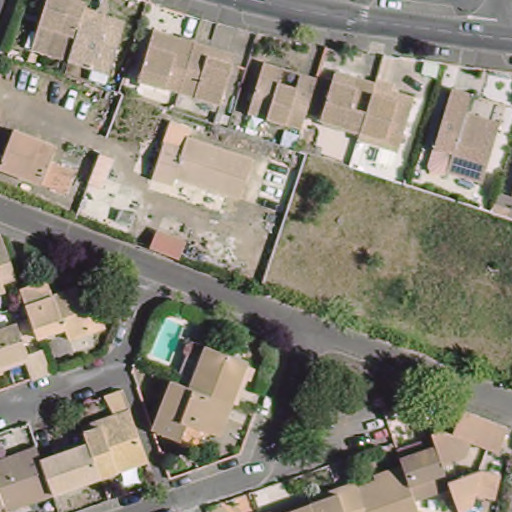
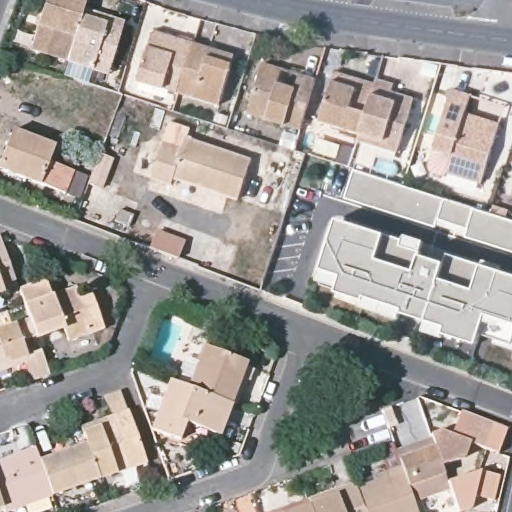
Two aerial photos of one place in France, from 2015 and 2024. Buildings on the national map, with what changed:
unchanged [(37,30),(40,17),(42,12),(46,0),(86,0),(83,9),(69,54),(45,47),(32,42),(37,30)]
unchanged [(92,71),(66,62),(69,54),(83,9),(99,13),(107,16),(123,19),(108,70),(107,75),(92,71)]
unchanged [(187,89),(147,76),(162,26),(203,39),(195,66),(187,89)]
unchanged [(186,91),(187,89),(195,66),(203,39),(221,45),(243,52),(241,61),(228,104),(186,91)]
unchanged [(296,76),(298,67),(315,72),(299,123),(246,107),(262,56),(281,62),(278,71),(296,76)]
unchanged [(318,112),(331,74),(334,64),(355,71),(373,76),(358,126),(318,112)]
unchanged [(396,146),(356,134),(358,126),(373,76),(375,72),(392,77),(390,85),(396,87),(412,92),(396,146)]
unchanged [(451,168),(456,152),(454,149),(438,144),(455,86),(474,92),(469,109),(480,113),(501,120),(484,178),(451,168)]
unchanged [(37,183),(0,169),(0,161),(11,131),(50,146),(45,161),(70,171),(62,192),(37,183)]
unchanged [(240,197),(176,177),(173,185),(153,179),(165,142),(184,149),(188,137),(253,160),(240,197)]
new [(115,160),(104,191),(90,185),(102,155),(115,160)]
new [(512,253),(464,237),(466,233),(438,222),(436,228),(346,199),(354,170),(512,220),(512,253)]
new [(402,240),(405,234),(426,241),(422,254),(444,261),(447,254),(481,265),(512,274),(512,343),(482,335),(479,346),(444,334),(447,326),(403,312),(404,308),(365,295),(363,301),(338,292),(343,276),(323,270),(338,220),(384,232),(402,240)]
unchanged [(5,299),(0,301),(0,242),(2,243),(15,283),(2,288),(5,299)]
unchanged [(73,337),(68,327),(42,337),(40,334),(34,315),(30,302),(25,287),(50,278),(56,293),(79,285),(83,296),(96,292),(103,313),(103,314),(107,325),(91,330),(73,337)]
unchanged [(34,315),(40,334),(22,342),(27,354),(45,348),(53,372),(35,377),(29,360),(0,370),(0,327),(34,315)]
unchanged [(229,405),(187,388),(203,345),(246,361),(229,405)]
unchanged [(158,412),(170,381),(187,388),(229,405),(217,436),(158,412)]
unchanged [(186,441),(185,441),(152,427),(158,412),(217,436),(186,441)]
unchanged [(500,452),(471,441),(461,460),(443,467),(435,444),(430,431),(439,427),(452,432),(460,413),(507,432),(500,452)]
unchanged [(100,481),(88,446),(85,438),(83,432),(117,420),(131,415),(148,465),(100,481)]
unchanged [(448,481),(452,492),(417,505),(404,468),(403,465),(424,457),(422,450),(422,449),(435,444),(443,467),(448,481)]
unchanged [(100,481),(54,497),(42,462),(88,446),(100,481)]
unchanged [(424,457),(404,465),(403,465),(400,457),(422,449),(424,457)]
unchanged [(11,512),(6,512),(5,507),(0,494),(0,463),(38,450),(42,462),(54,497),(11,512)]
unchanged [(378,483),(376,477),(390,473),(404,468),(417,505),(419,512),(366,512),(358,491),(378,483)]
unchanged [(483,496),(474,508),(462,512),(459,512),(452,492),(448,481),(480,470),(501,475),(496,498),(483,496)]
unchanged [(314,512),(311,505),(338,495),(336,491),(356,483),(358,491),(366,512),(314,512)]
unchanged [(0,509),(0,494),(5,507),(0,509)]
unchanged [(290,512),(311,505),(314,512),(290,512)]
unchanged [(281,512),(274,512),(280,510),(281,512)]

